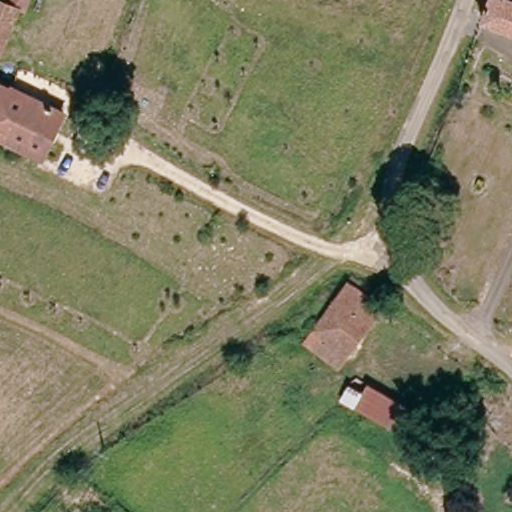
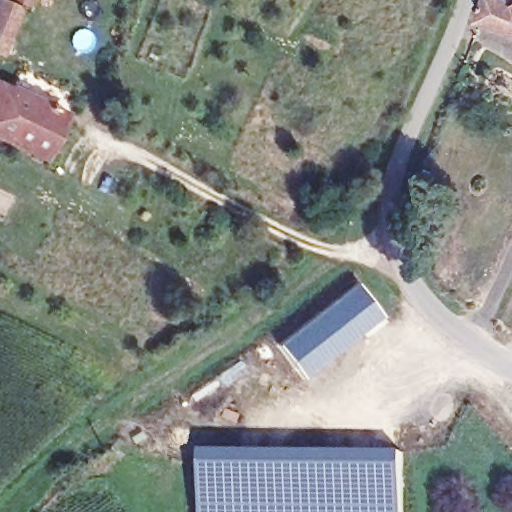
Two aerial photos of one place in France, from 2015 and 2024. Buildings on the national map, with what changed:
unchanged [(26,16),(16,13),(1,56),(0,55),(0,0),(33,0),(26,16)]
unchanged [(511,33),(476,20),(484,0),(512,0),(512,33),(511,33)]
unchanged [(41,155),(0,135),(0,82),(63,112),(41,155)]
unchanged [(379,307),(336,368),(305,346),(347,285),(379,307)]
demolished [(338,391),(347,396),(354,383),(399,410),(387,432),(332,401),(338,391)]
new [(403,512),(203,512),(204,452),(403,451),(403,512)]

